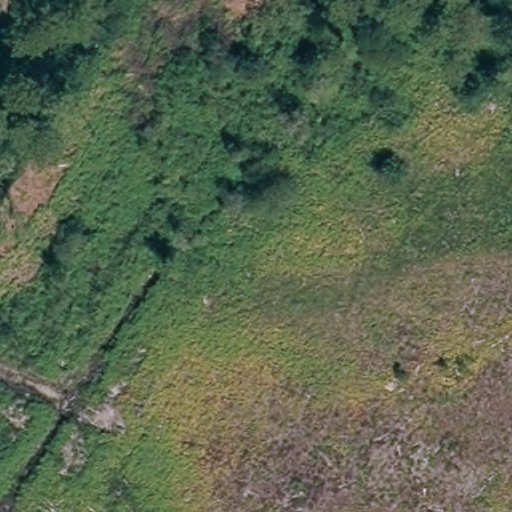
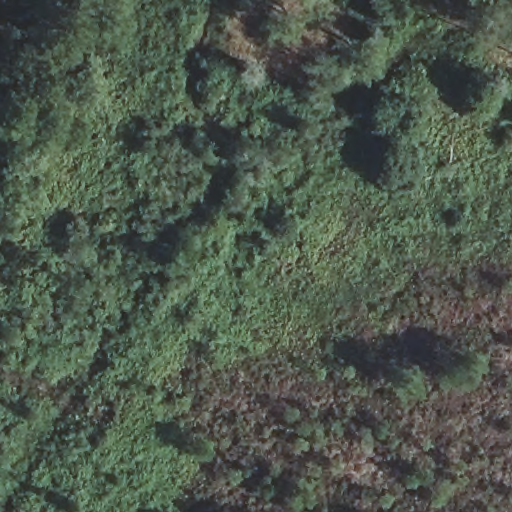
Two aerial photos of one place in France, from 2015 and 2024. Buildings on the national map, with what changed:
[]

